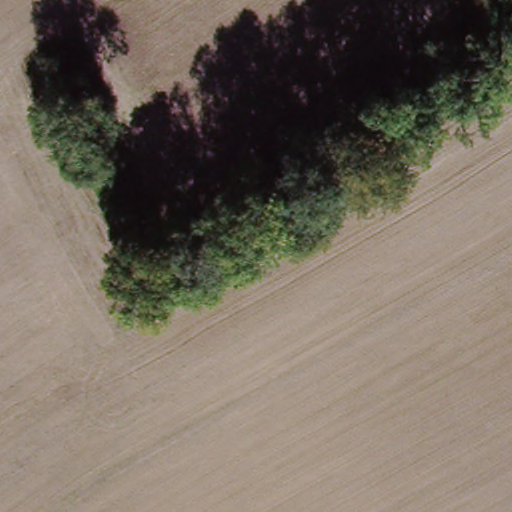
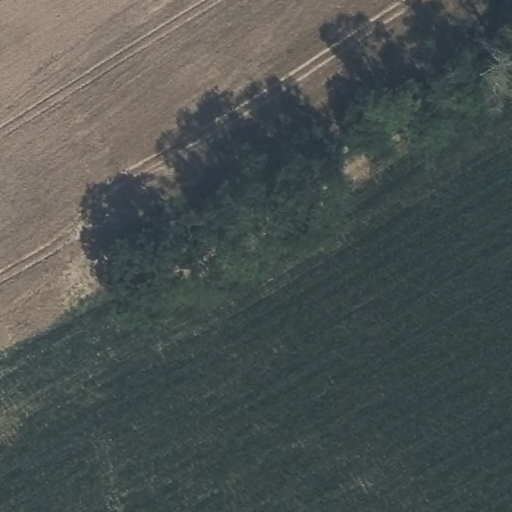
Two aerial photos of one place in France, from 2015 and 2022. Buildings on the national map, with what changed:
[]

